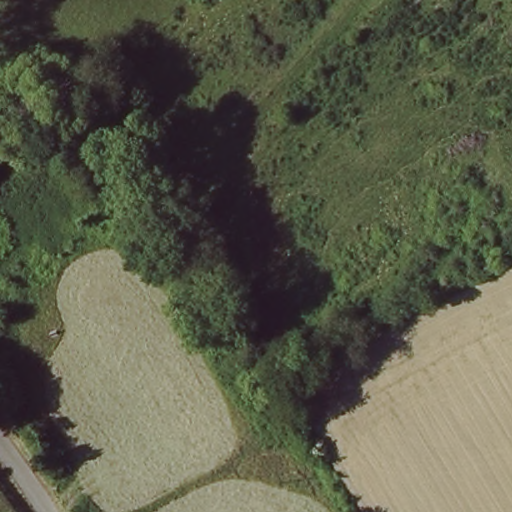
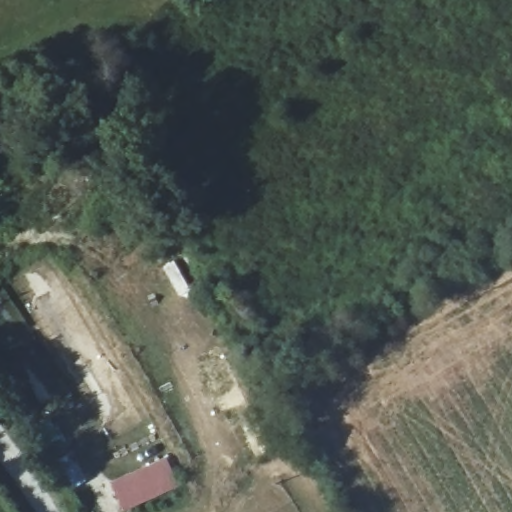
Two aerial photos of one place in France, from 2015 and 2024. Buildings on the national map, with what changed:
new [(167,458),(179,487),(126,512),(124,512),(112,482),(167,458)]

